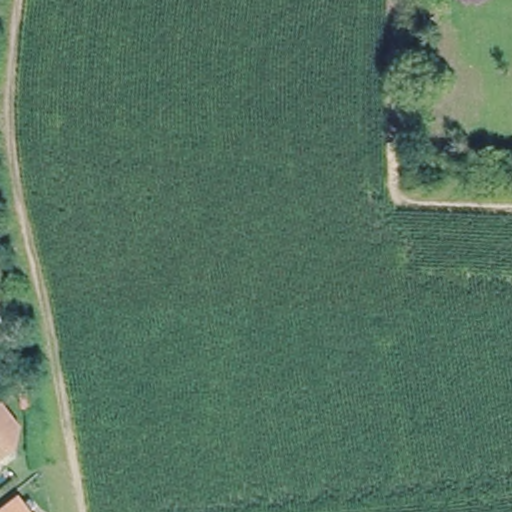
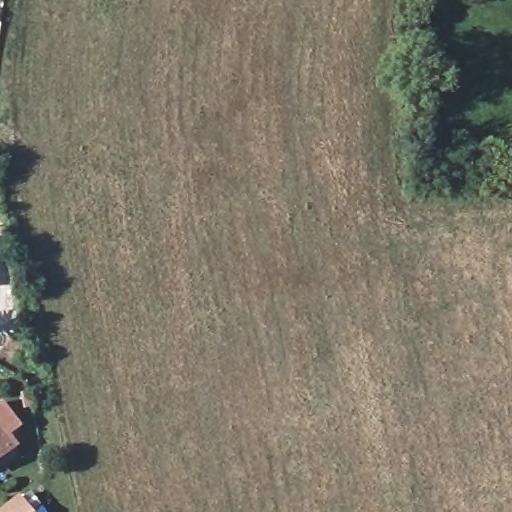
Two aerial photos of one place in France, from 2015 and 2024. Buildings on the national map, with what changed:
unchanged [(14,443),(0,427),(0,396),(29,431),(14,443)]
unchanged [(0,454),(0,427),(14,443),(0,454)]
unchanged [(0,509),(20,493),(33,512),(0,512),(0,509)]

